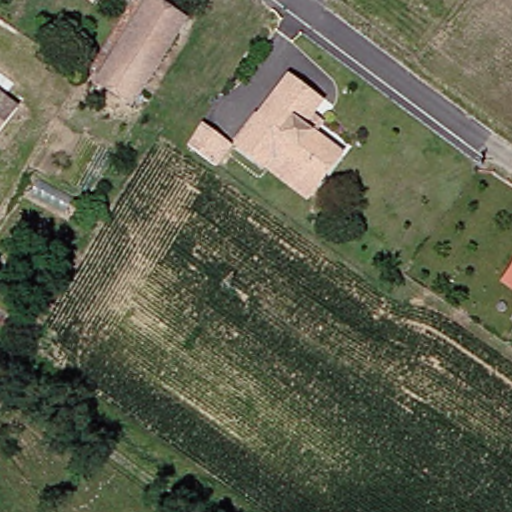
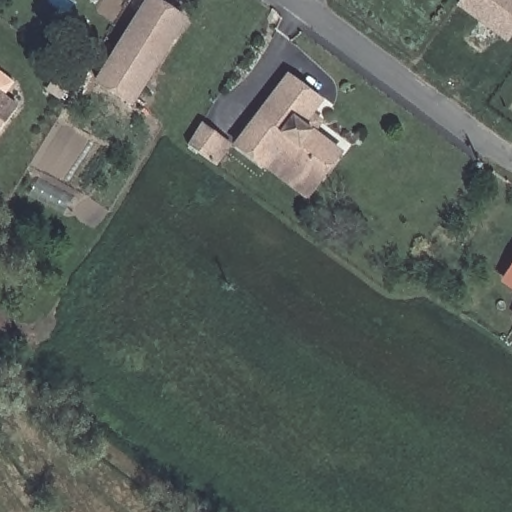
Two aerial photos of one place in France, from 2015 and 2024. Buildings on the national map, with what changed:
unchanged [(140,0),(144,0),(175,20),(122,103),(88,81),(140,0)]
new [(459,0),(512,0),(512,44),(488,26),(478,19),(457,4),(459,0)]
unchanged [(256,166),(227,144),(279,73),(312,97),(295,121),(332,148),(308,180),(297,196),(256,166)]
unchanged [(19,106),(0,133),(0,92),(19,106)]
unchanged [(174,134),(187,114),(210,131),(218,136),(204,156),(196,150),(174,134)]
unchanged [(512,253),(512,287),(495,275),(512,253)]
unchanged [(512,311),(512,317),(509,315),(512,311)]

